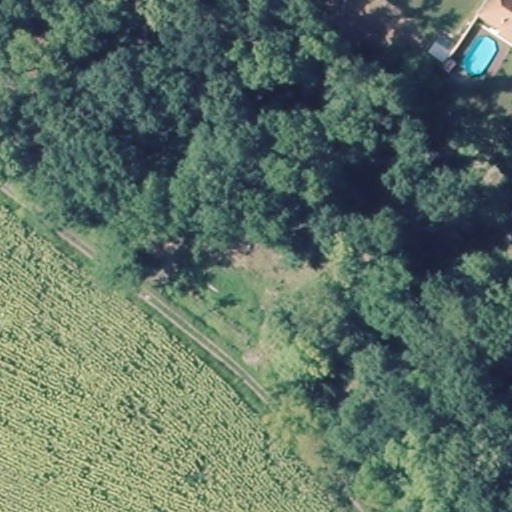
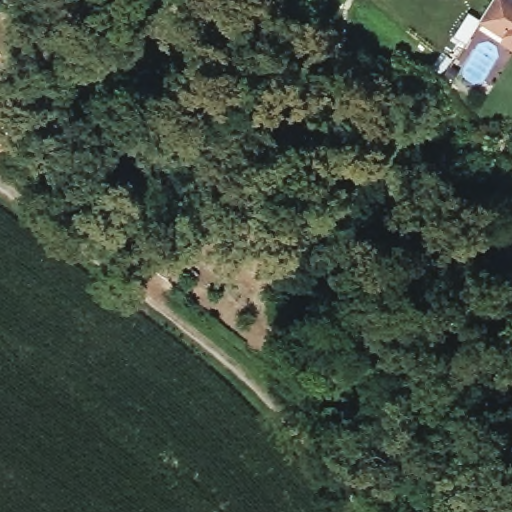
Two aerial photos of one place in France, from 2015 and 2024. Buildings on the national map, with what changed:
unchanged [(497,0),(512,0),(512,40),(483,23),(497,0)]

